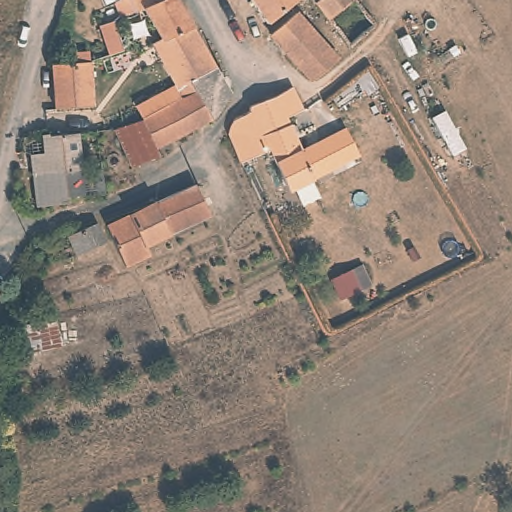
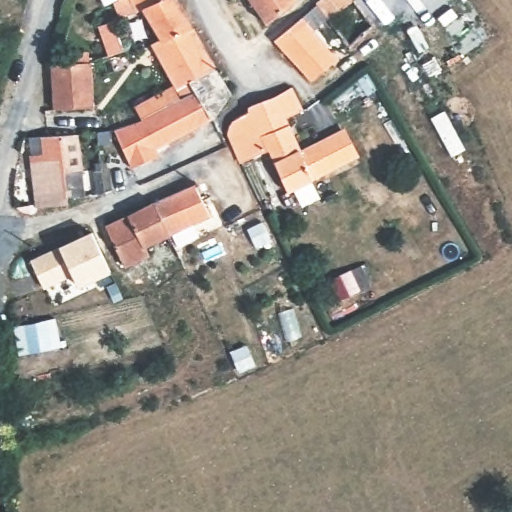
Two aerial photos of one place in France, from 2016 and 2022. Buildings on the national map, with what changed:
unchanged [(153,145),(157,152),(132,164),(113,124),(140,116),(181,94),(152,37),(160,34),(154,15),(139,20),(131,6),(128,0),(187,0),(189,4),(184,6),(213,64),(228,94),(214,110),(215,114),(213,115),(153,145)]
unchanged [(260,23),(244,0),(285,0),(260,23)]
unchanged [(351,47),(329,19),(315,2),(314,0),(352,0),(352,1),(375,29),(351,47)]
unchanged [(295,12),(299,16),(314,31),(335,61),(311,81),(269,35),(295,12)]
unchanged [(91,59),(94,86),(96,101),(48,103),(58,61),(91,59)]
unchanged [(295,137),(274,147),(268,149),(263,151),(245,158),(230,125),(236,124),(238,116),(256,107),(256,103),(279,93),(295,86),(305,109),(289,116),(298,136),(295,137)]
unchanged [(361,158),(287,192),(268,149),(274,147),(295,137),(301,150),(345,128),(361,158)]
unchanged [(38,204),(34,175),(31,178),(37,152),(46,152),(49,132),(81,132),(83,167),(67,169),(70,197),(38,204)]
unchanged [(209,220),(168,238),(153,206),(193,188),(209,220)]
unchanged [(168,238),(145,248),(149,258),(124,269),(103,229),(153,206),(168,238)]
demolished [(101,248),(74,258),(66,239),(92,230),(101,248)]
new [(59,246),(92,231),(111,272),(79,288),(73,276),(43,289),(29,260),(59,246)]
unchanged [(12,324),(61,318),(67,344),(16,354),(12,324)]

